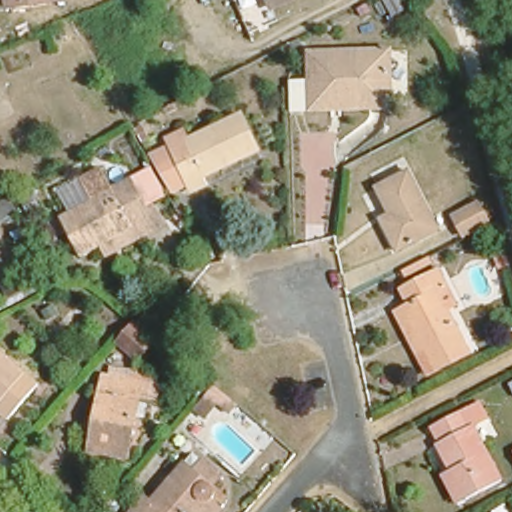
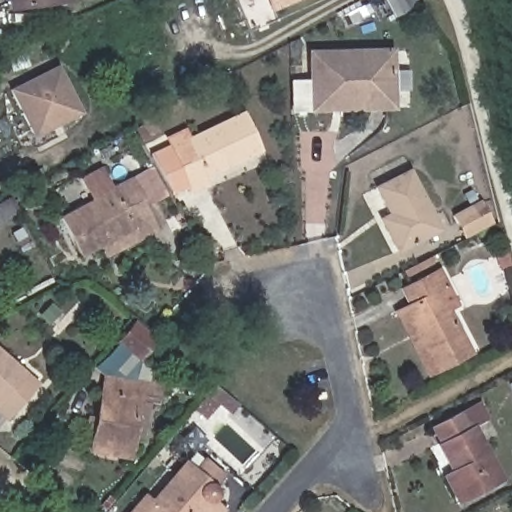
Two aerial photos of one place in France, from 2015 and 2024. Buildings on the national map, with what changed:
unchanged [(9,6),(7,0),(32,0),(9,6)]
unchanged [(269,9),(266,0),(290,0),(269,9)]
unchanged [(388,47),(386,104),(307,103),(308,46),(388,47)]
new [(8,90),(57,65),(81,114),(31,139),(8,90)]
unchanged [(247,154),(192,180),(195,187),(179,195),(176,187),(158,196),(144,173),(164,163),(159,151),(174,144),(176,147),(231,121),(247,154)]
unchanged [(435,226),(393,249),(375,217),(384,211),(369,185),(402,167),(435,226)]
unchanged [(101,245),(80,256),(58,215),(90,198),(79,179),(100,168),(111,187),(130,176),(156,225),(137,236),(105,254),(101,245)]
unchanged [(490,219),(460,232),(449,212),(479,197),(490,219)]
unchanged [(399,312),(406,308),(399,293),(433,275),(441,290),(451,308),(444,312),(466,357),(431,375),(424,378),(414,358),(392,315),(399,312)]
unchanged [(150,338),(135,355),(113,337),(129,320),(150,338)]
unchanged [(33,378),(2,413),(0,412),(0,350),(33,378)]
unchanged [(85,416),(95,418),(104,375),(131,380),(132,374),(150,377),(149,385),(158,386),(156,400),(137,396),(124,457),(88,450),(92,431),(83,430),(85,416)]
unchanged [(441,476),(449,471),(433,443),(436,440),(429,427),(475,402),(484,420),(471,426),(499,478),(464,498),(455,502),(441,476)]
unchanged [(224,480),(225,486),(225,494),(223,500),(219,504),(212,512),(123,512),(142,490),(146,495),(179,456),(188,464),(199,452),(217,468),(222,475),(224,480)]
unchanged [(512,452),(512,453),(511,452),(512,452)]

